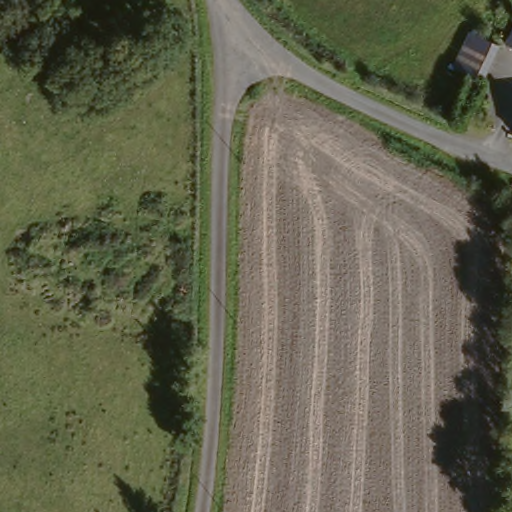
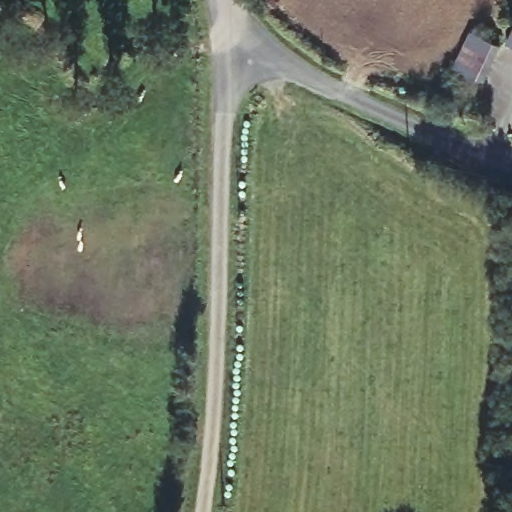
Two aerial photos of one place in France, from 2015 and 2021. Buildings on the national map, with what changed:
unchanged [(499,40),(512,15),(512,46),(499,40)]
unchanged [(486,69),(479,81),(453,66),(471,30),(498,45),(497,45),(486,69)]

